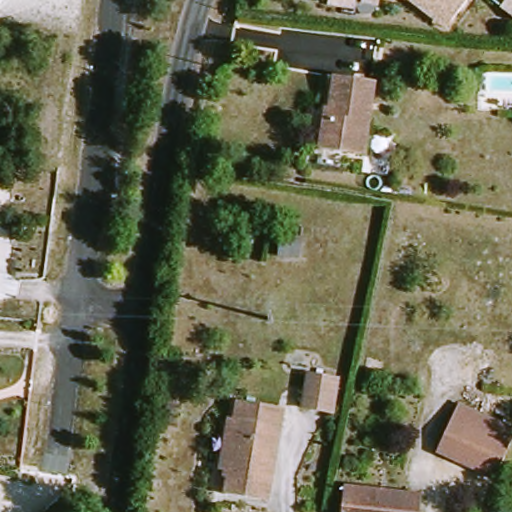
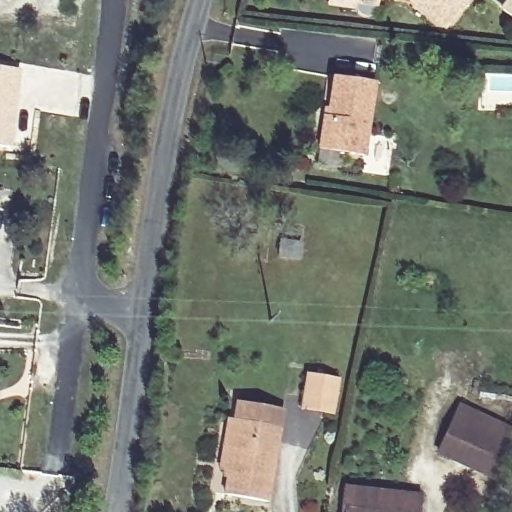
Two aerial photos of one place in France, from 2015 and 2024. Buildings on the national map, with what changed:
unchanged [(423,18),(405,0),(402,0),(469,0),(447,27),(442,33),(431,24),(423,18)]
unchanged [(506,0),(512,0),(512,17),(501,7),(506,0)]
new [(22,71),(13,148),(0,147),(0,69),(22,71)]
unchanged [(364,157),(316,148),(323,114),(330,116),(337,79),(377,87),(364,157)]
unchanged [(332,415),(300,410),(306,375),(337,379),(332,415)]
unchanged [(226,495),(230,471),(227,471),(220,470),(229,418),(237,419),(238,404),(283,412),(281,427),(269,503),(226,495)]
unchanged [(486,465),(444,445),(460,411),(502,431),(486,465)]
unchanged [(342,512),(343,491),(420,499),(419,512),(342,512)]

